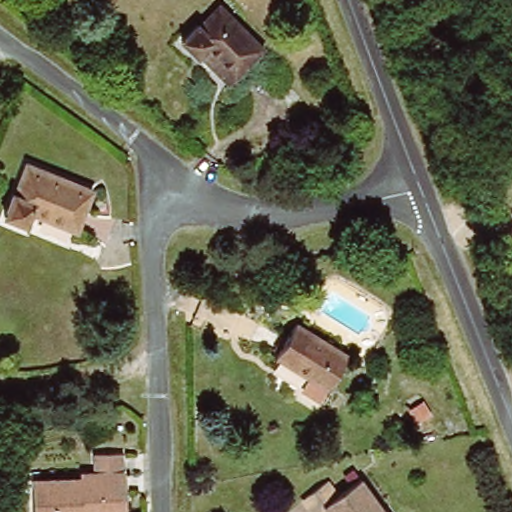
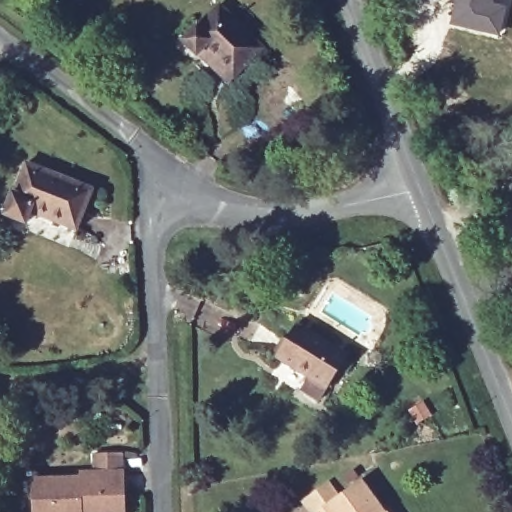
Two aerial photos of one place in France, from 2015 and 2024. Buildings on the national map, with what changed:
new [(507,6),(500,36),(448,25),(452,0),(493,0),(492,2),(507,6)]
unchanged [(199,52),(196,54),(181,38),(195,24),(197,25),(219,4),(262,46),(234,75),(227,81),(199,52)]
unchanged [(4,218),(12,197),(15,197),(27,167),(90,193),(84,212),(76,234),(30,216),(25,227),(4,218)]
unchanged [(297,325),(347,355),(320,402),(303,391),(310,380),(277,358),(297,325)]
unchanged [(80,477),(80,472),(97,471),(97,455),(120,453),(120,468),(124,470),(125,512),(34,512),(32,480),(80,477)]
unchanged [(313,506),(335,490),(345,503),(367,487),(385,512),(317,512),(313,506)]

